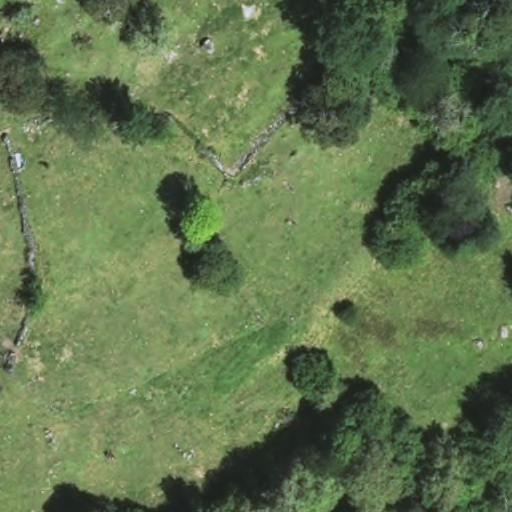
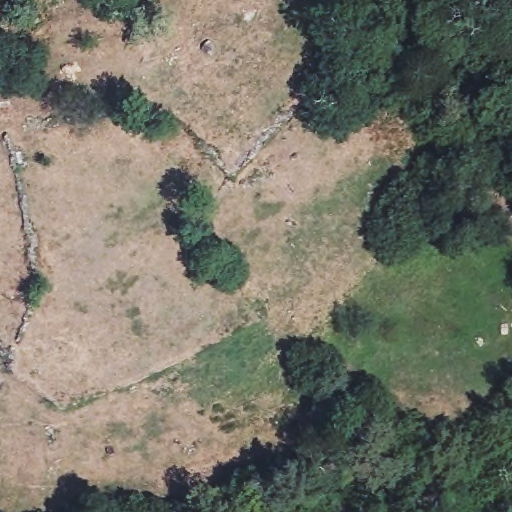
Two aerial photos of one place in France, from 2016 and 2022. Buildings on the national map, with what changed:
[]

